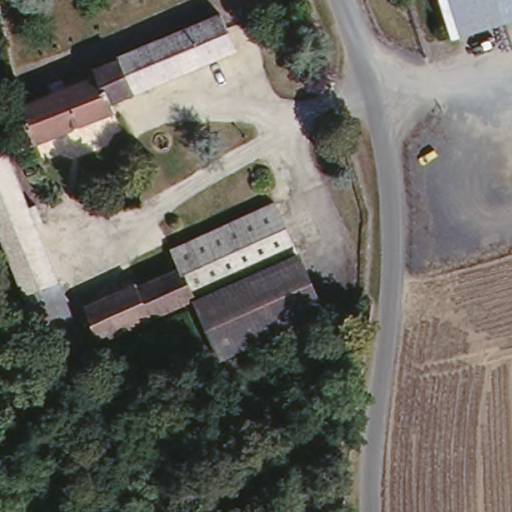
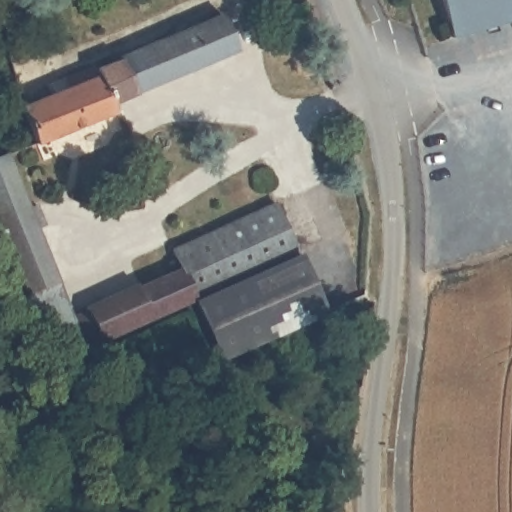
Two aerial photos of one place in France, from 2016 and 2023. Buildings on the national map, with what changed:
unchanged [(441,0),(512,0),(512,23),(453,40),(441,0)]
unchanged [(82,71),(77,61),(98,52),(103,58),(121,50),(118,44),(227,1),(241,36),(114,88),(118,97),(20,138),(2,101),(82,71)]
unchanged [(32,195),(39,193),(48,212),(41,215),(65,270),(21,286),(0,234),(0,147),(11,143),(32,195)]
unchanged [(271,203),(327,315),(220,362),(190,302),(104,343),(86,308),(139,283),(140,287),(179,268),(169,247),(271,203)]
unchanged [(79,304),(36,321),(21,286),(65,270),(79,304)]

